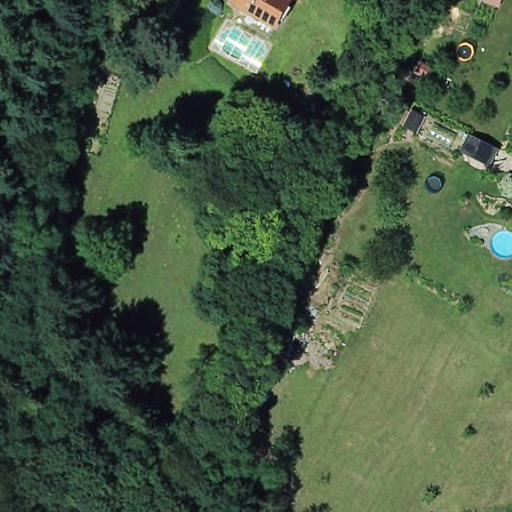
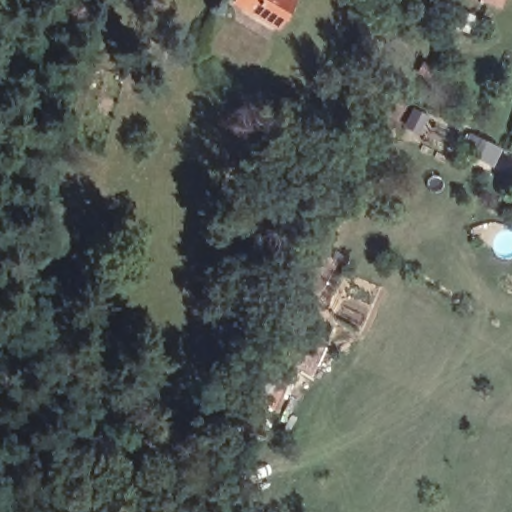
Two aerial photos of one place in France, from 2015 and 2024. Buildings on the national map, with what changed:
unchanged [(241,7),(244,0),(280,0),(294,7),(281,31),(241,7)]
unchanged [(490,0),(500,0),(499,3),(490,0)]

